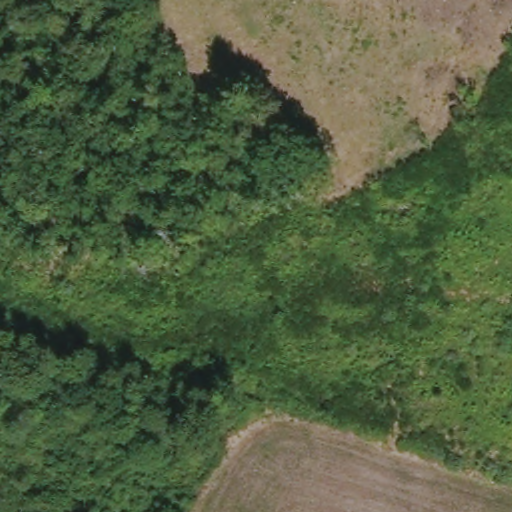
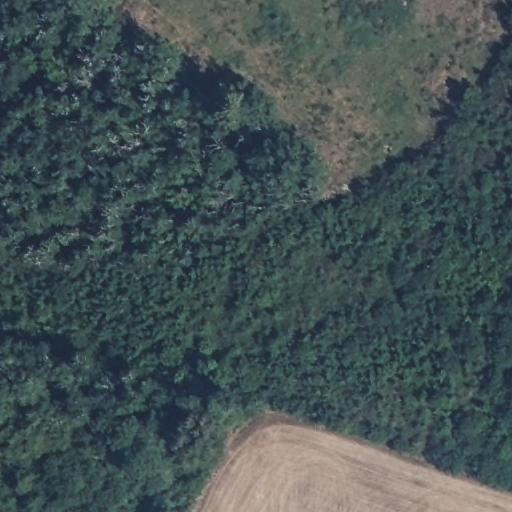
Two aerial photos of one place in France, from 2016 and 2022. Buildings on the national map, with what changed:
[]

